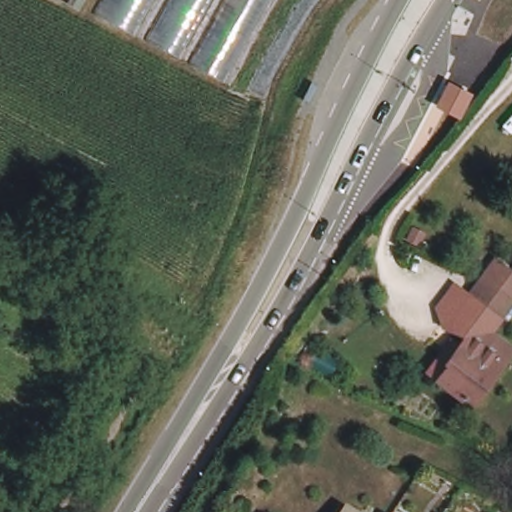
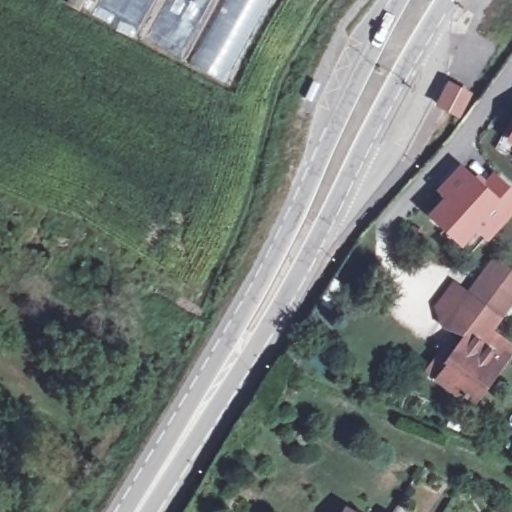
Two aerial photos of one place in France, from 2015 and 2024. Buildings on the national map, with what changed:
unchanged [(94,18),(103,0),(171,0),(147,44),(94,18)]
unchanged [(147,44),(171,0),(271,0),(226,86),(147,44)]
new [(448,81),(473,92),(459,118),(436,105),(448,81)]
new [(512,128),(512,145),(506,141),(512,128)]
new [(493,171),(512,188),(512,214),(489,241),(475,230),(463,246),(428,215),(443,198),(435,192),(460,164),(483,183),(493,171)]
unchanged [(512,269),(512,304),(503,315),(471,291),(496,257),(512,269)]
unchanged [(441,356),(450,360),(467,335),(457,331),(453,311),(466,293),(498,316),(489,330),(512,345),(512,349),(507,357),(474,406),(428,375),(441,356)]
unchanged [(345,500),(360,512),(336,512),(345,500)]

